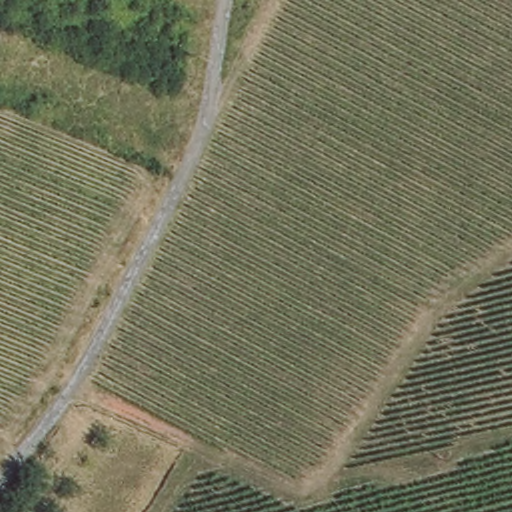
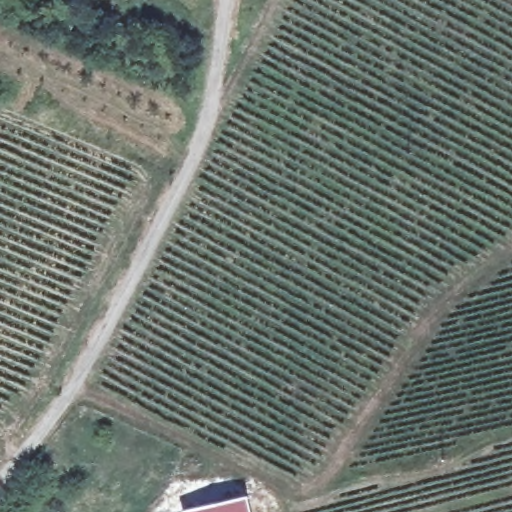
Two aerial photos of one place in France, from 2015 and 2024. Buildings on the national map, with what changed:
new [(246,494),(250,512),(179,512),(178,509),(246,494)]

